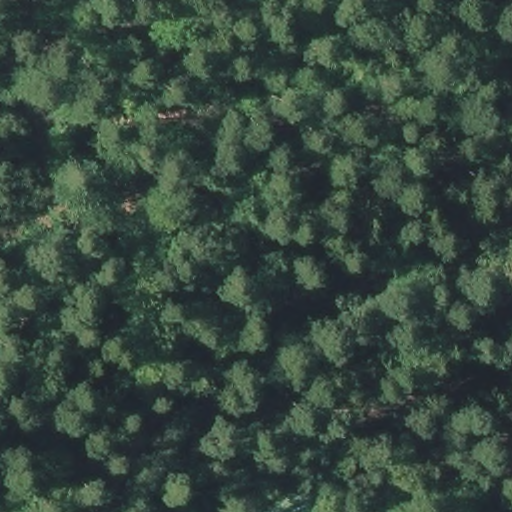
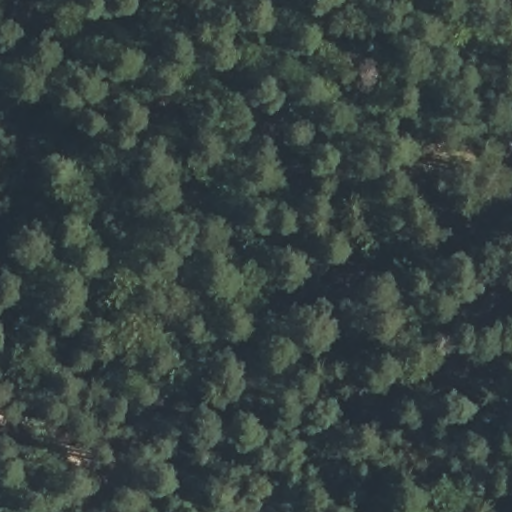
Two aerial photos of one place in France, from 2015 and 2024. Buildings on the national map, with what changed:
unchanged [(255,512),(251,500),(313,481),(322,512),(255,512)]

